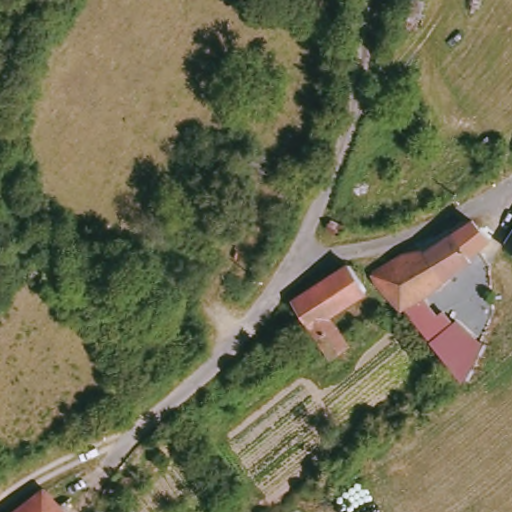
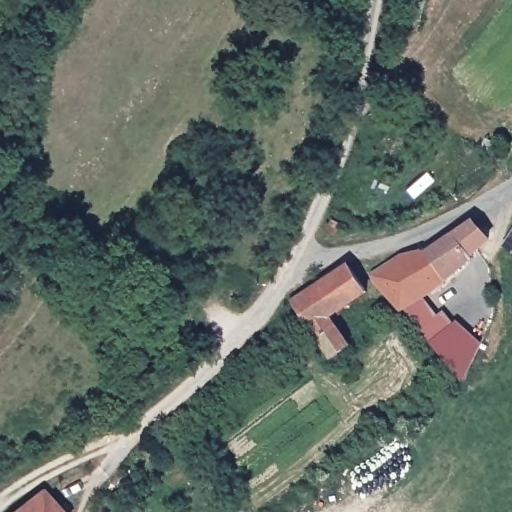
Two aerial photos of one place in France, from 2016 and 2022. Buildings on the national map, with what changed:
unchanged [(489,240),(475,251),(477,255),(424,297),(440,314),(447,309),(455,317),(433,336),(376,279),(395,264),(427,254),(432,258),(477,227),(489,240)]
unchanged [(512,238),(512,251),(506,247),(512,238)]
unchanged [(335,356),(310,324),(309,322),(295,303),(352,267),(365,286),(327,310),(351,343),(335,356)]
unchanged [(175,341),(154,321),(180,295),(201,317),(175,341)]
unchanged [(68,512),(67,512),(16,512),(40,483),(68,512)]

